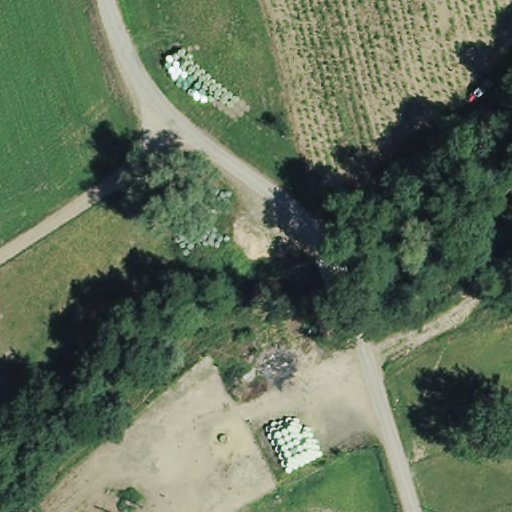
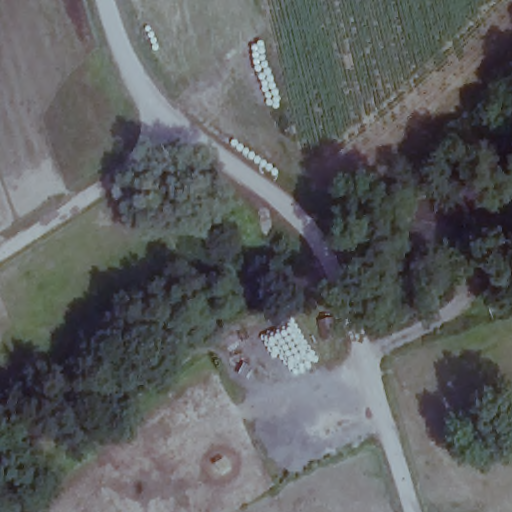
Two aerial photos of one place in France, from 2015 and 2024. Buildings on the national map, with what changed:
unchanged [(324,323),(332,321),(335,334),(327,337),(324,323)]
unchanged [(484,430),(500,425),(504,438),(487,442),(484,430)]

